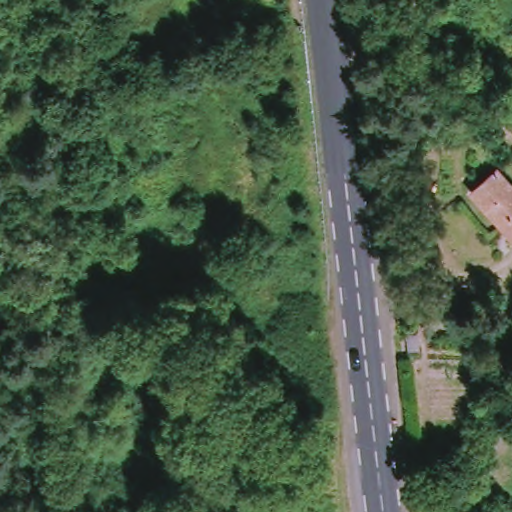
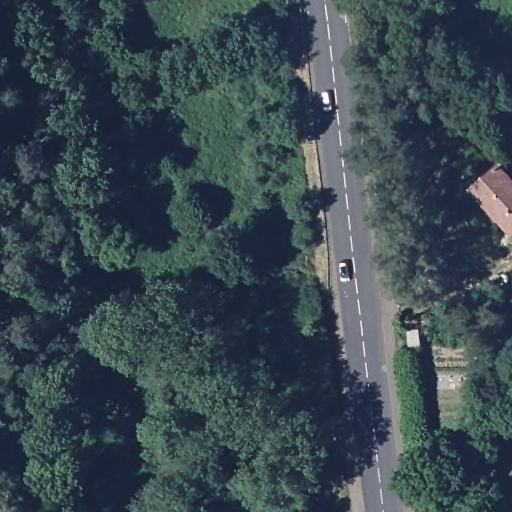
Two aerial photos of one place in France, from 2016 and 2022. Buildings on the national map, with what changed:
unchanged [(476,189),(501,167),(512,180),(512,229),(476,189)]
unchanged [(405,335),(420,332),(422,348),(407,350),(405,335)]

